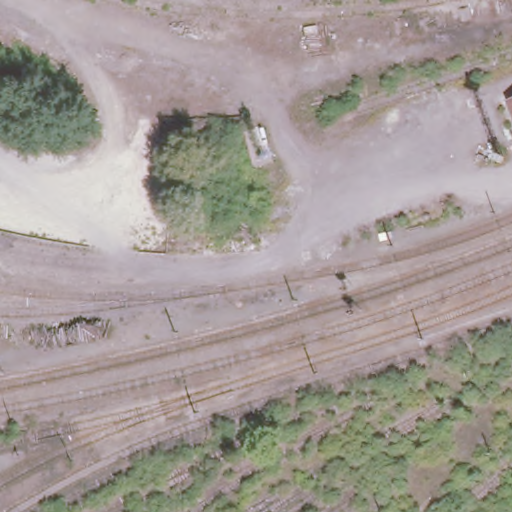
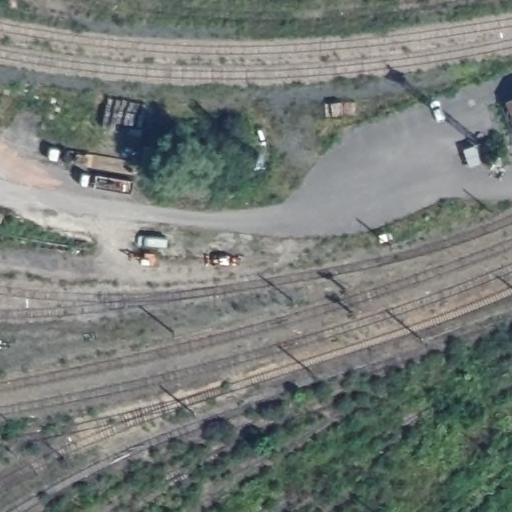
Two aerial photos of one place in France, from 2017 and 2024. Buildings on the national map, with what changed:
unchanged [(512,95),(512,115),(505,97),(512,95)]

